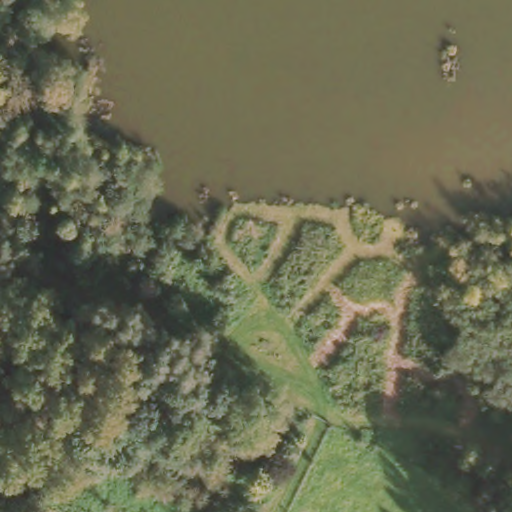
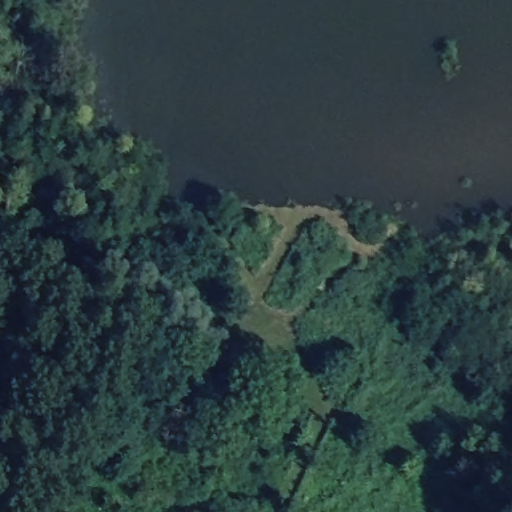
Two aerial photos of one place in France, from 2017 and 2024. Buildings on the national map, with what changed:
unchanged [(108,425),(123,396),(138,404),(138,407),(243,460),(230,486),(108,425)]

